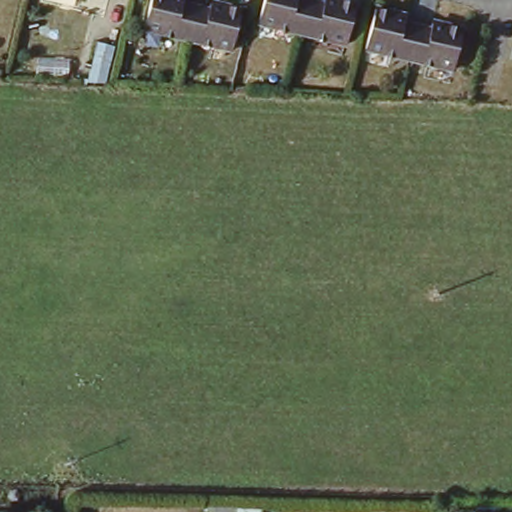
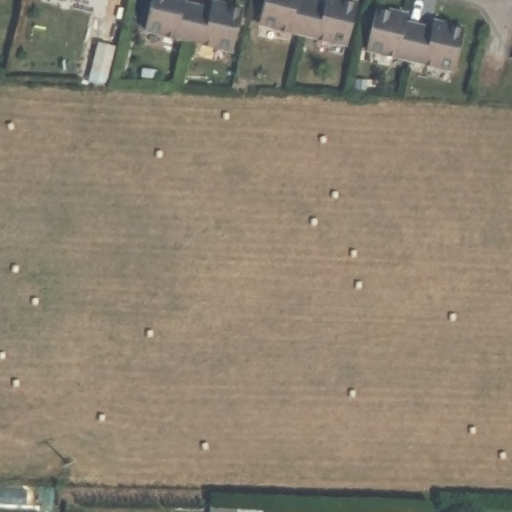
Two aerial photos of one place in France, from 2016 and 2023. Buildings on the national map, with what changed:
unchanged [(183,5),(211,11),(212,4),(242,10),(231,49),(150,30),(156,0),(185,0),(183,5)]
unchanged [(329,2),(329,0),(356,0),(360,1),(350,39),(260,19),(266,0),(319,0),(329,2)]
unchanged [(410,18),(407,25),(433,32),(435,24),(462,30),(452,69),(370,49),(381,10),(410,18)]
unchanged [(263,512),(169,512),(169,505),(263,508),(263,512)]

